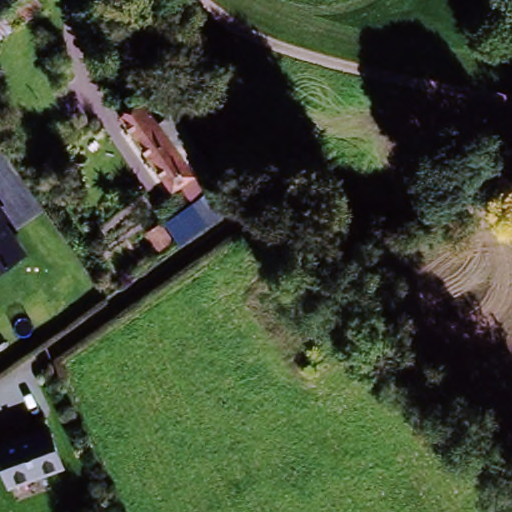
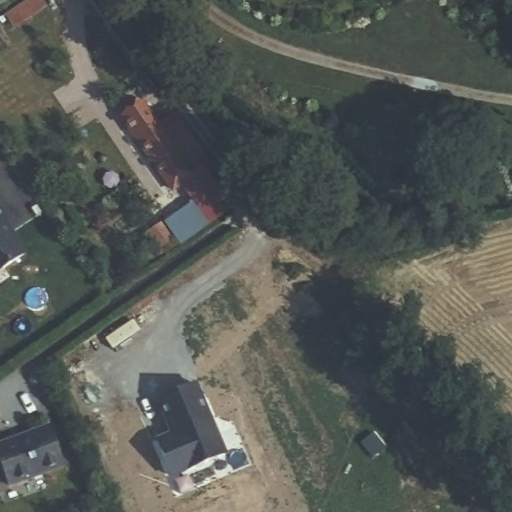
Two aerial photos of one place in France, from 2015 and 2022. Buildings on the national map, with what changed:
unchanged [(0,3),(0,0),(3,0),(0,3)]
unchanged [(195,165),(190,172),(222,215),(180,246),(160,219),(187,200),(173,181),(167,185),(115,114),(136,100),(150,118),(158,112),(195,165)]
unchanged [(504,156),(499,130),(512,127),(512,154),(504,156)]
unchanged [(317,204),(278,214),(273,196),(315,187),(317,204)]
unchanged [(7,225),(27,252),(0,272),(0,207),(11,221),(7,225)]
new [(195,382),(225,453),(170,476),(153,438),(168,431),(155,398),(195,382)]
unchanged [(2,492),(0,486),(0,449),(47,435),(62,471),(2,492)]

